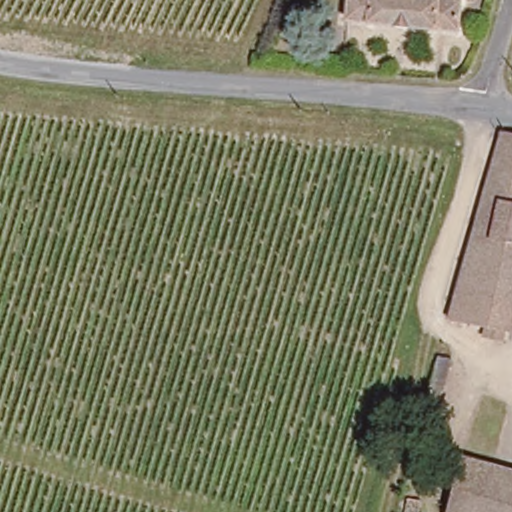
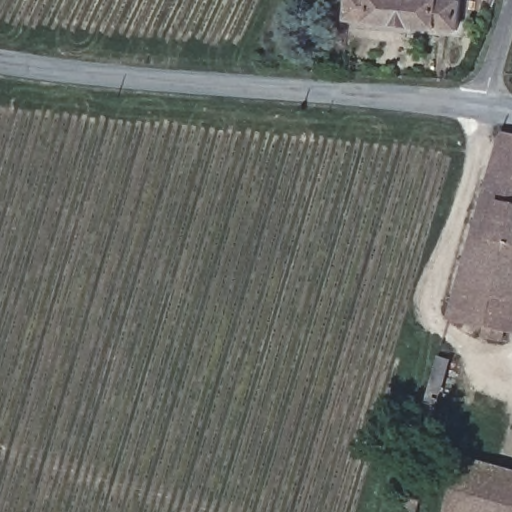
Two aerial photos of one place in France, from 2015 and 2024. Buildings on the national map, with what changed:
unchanged [(344,26),(346,0),(457,0),(454,36),(344,26)]
unchanged [(501,332),(499,341),(478,337),(479,327),(444,320),(498,132),(512,135),(512,334),(501,332)]
unchanged [(452,362),(436,419),(422,416),(438,358),(452,362)]
unchanged [(460,458),(512,472),(512,512),(445,512),(460,458)]

